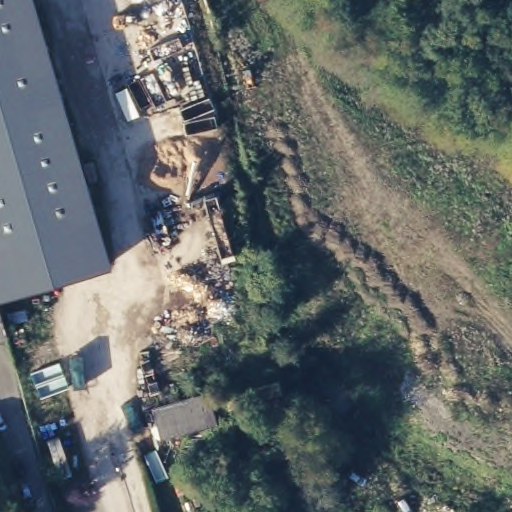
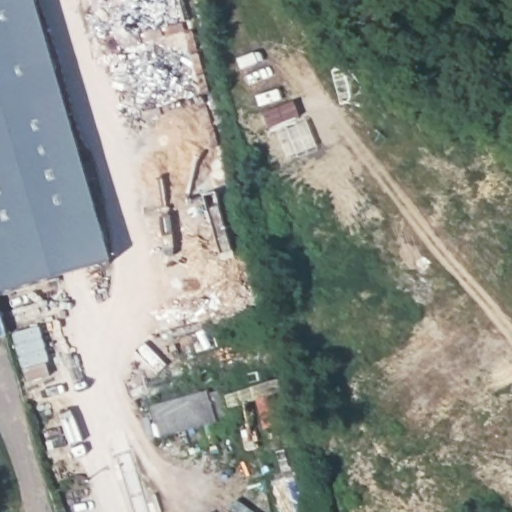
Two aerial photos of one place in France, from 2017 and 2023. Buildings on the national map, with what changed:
unchanged [(0,0),(33,0),(94,210),(0,237),(0,0)]
unchanged [(88,181),(83,164),(93,161),(98,178),(88,181)]
unchanged [(110,264),(0,295),(0,237),(94,210),(110,264)]
unchanged [(0,318),(5,333),(0,335),(0,318)]
unchanged [(226,418),(170,433),(161,402),(218,387),(226,418)]

